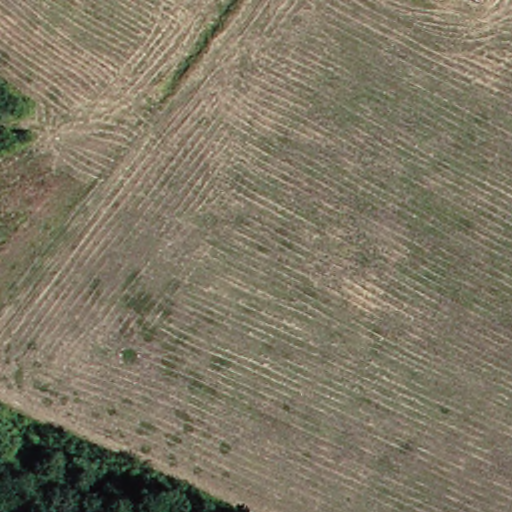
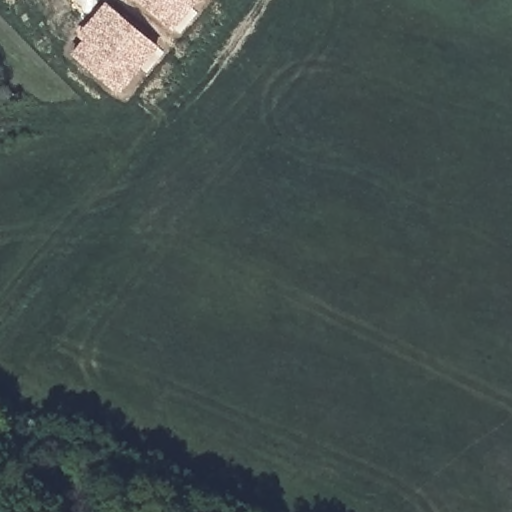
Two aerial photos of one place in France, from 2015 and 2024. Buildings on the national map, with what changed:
new [(137,0),(197,0),(172,30),(137,0)]
new [(118,94),(71,52),(82,40),(76,35),(106,2),(159,47),(118,94)]

